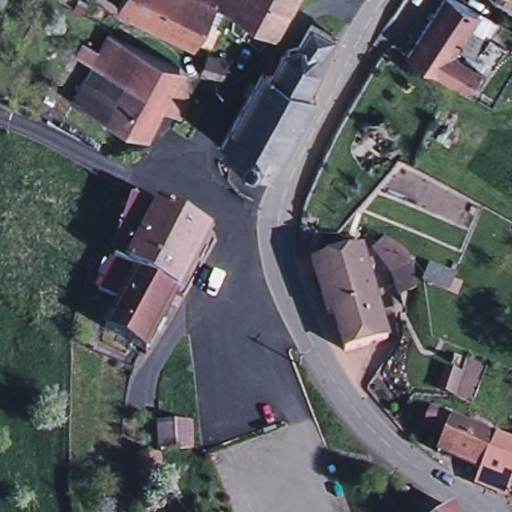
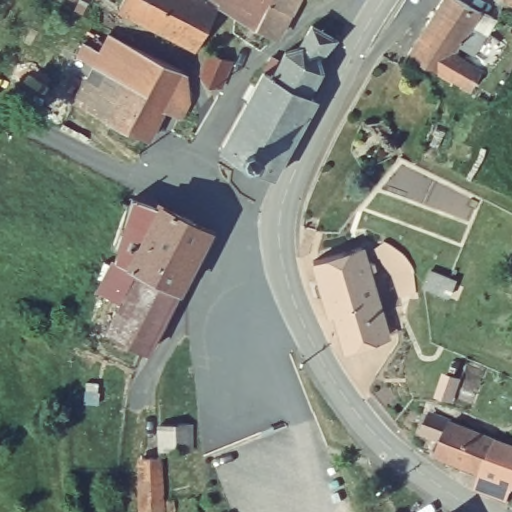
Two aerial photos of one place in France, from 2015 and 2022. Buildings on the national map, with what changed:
unchanged [(219,9),(196,50),(179,41),(137,19),(119,9),(124,0),(147,0),(202,0),(203,0),(219,9)]
unchanged [(278,37),(236,12),(220,4),(221,2),(217,0),(243,0),(298,0),(278,37)]
unchanged [(410,55),(435,14),(444,0),(459,0),(480,13),(497,22),(484,38),(471,51),(460,45),(453,55),(482,72),(471,91),(441,74),(410,55)]
unchanged [(497,0),(512,0),(512,7),(497,0)]
unchanged [(272,61),(280,65),(286,56),(300,54),(313,31),(336,45),(318,65),(322,76),(308,100),(317,105),(274,183),(221,155),(265,76),(272,61)]
unchanged [(121,93),(127,81),(108,71),(79,57),(86,44),(102,52),(112,35),(116,36),(124,41),(150,55),(183,71),(190,74),(194,106),(183,122),(163,111),(149,140),(117,125),(92,114),(73,104),(88,76),(121,93)]
unchanged [(232,63),(222,84),(201,76),(210,55),(232,63)]
unchanged [(0,210),(0,192),(11,160),(38,170),(73,184),(57,229),(58,229),(57,231),(29,220),(21,217),(0,210)]
unchanged [(57,229),(73,184),(130,204),(116,248),(58,229),(57,229)]
unchanged [(130,204),(132,199),(139,201),(159,207),(160,205),(173,211),(147,259),(121,250),(116,248),(130,204)]
unchanged [(148,351),(107,331),(121,301),(100,291),(107,275),(100,273),(90,270),(80,266),(85,255),(105,260),(113,261),(116,258),(121,250),(147,259),(173,211),(211,231),(199,255),(180,290),(168,313),(148,351)]
unchanged [(389,242),(395,246),(406,255),(414,268),(416,294),(402,295),(393,271),(379,255),(384,240),(389,242)]
unchanged [(335,314),(329,315),(314,262),(363,247),(368,264),(373,262),(375,269),(369,270),(378,301),(335,314)]
unchanged [(455,280),(448,297),(424,285),(431,269),(455,280)]
unchanged [(389,338),(346,351),(335,314),(378,301),(389,338)]
unchanged [(447,375),(458,378),(451,398),(440,395),(447,375)]
unchanged [(476,469),(432,450),(438,435),(420,427),(427,408),(445,417),(512,445),(512,485),(508,483),(502,496),(470,482),(476,469)]
unchanged [(161,425),(191,423),(193,450),(161,452),(161,425)]
unchanged [(163,512),(141,512),(140,477),(143,477),(143,458),(161,457),(163,500),(163,512)]

